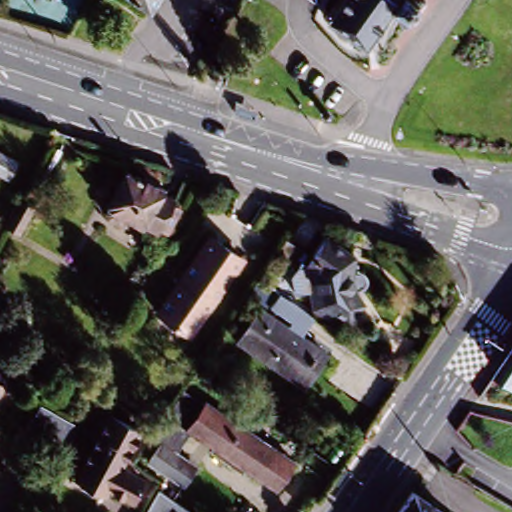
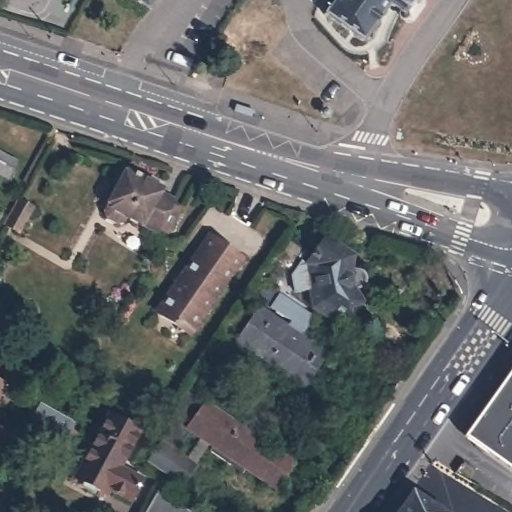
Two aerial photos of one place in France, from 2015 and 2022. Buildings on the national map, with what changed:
unchanged [(130,0),(152,0),(145,11),(130,0)]
unchanged [(384,8),(358,44),(323,18),(335,0),(390,0),(387,5),(402,5),(399,0),(410,0),(398,18),(384,8)]
unchanged [(4,174),(0,171),(0,149),(13,156),(4,174)]
unchanged [(157,191),(155,195),(170,203),(168,207),(177,211),(163,233),(155,229),(153,232),(124,216),(120,222),(115,223),(103,216),(102,209),(124,172),(157,191)]
unchanged [(15,199),(30,207),(22,223),(7,214),(15,199)]
unchanged [(190,337),(156,314),(208,237),(242,260),(190,337)]
unchanged [(360,262),(359,264),(358,268),(357,276),(356,283),(357,289),(359,296),(362,301),(364,305),(365,307),(352,328),(334,316),(328,322),(315,312),(313,296),(298,297),(297,285),(300,280),(304,280),(303,274),(314,259),(317,261),(331,243),(360,262)]
unchanged [(311,257),(300,273),(282,261),(293,245),(311,257)]
unchanged [(272,319),(328,359),(305,390),(245,347),(267,315),(256,307),(267,289),(284,300),(272,319)]
demolished [(512,381),(499,373),(512,355),(512,381)]
new [(512,381),(512,388),(509,386),(512,381)]
new [(473,436),(509,386),(512,388),(512,471),(510,474),(468,444),(473,436)]
unchanged [(22,401),(15,413),(0,405),(0,389),(22,401)]
unchanged [(197,472),(185,490),(149,466),(162,447),(152,440),(157,431),(183,395),(205,409),(207,407),(296,468),(277,495),(235,466),(232,470),(212,457),(215,453),(207,447),(193,469),(197,472)]
unchanged [(68,420),(57,442),(27,425),(38,403),(68,420)]
unchanged [(107,418),(135,435),(119,463),(91,444),(107,418)]
unchanged [(119,463),(115,471),(137,484),(125,504),(103,491),(99,498),(70,480),(91,444),(119,463)]
unchanged [(410,493),(437,512),(396,512),(410,493)]
unchanged [(178,512),(151,512),(158,500),(178,512)]

